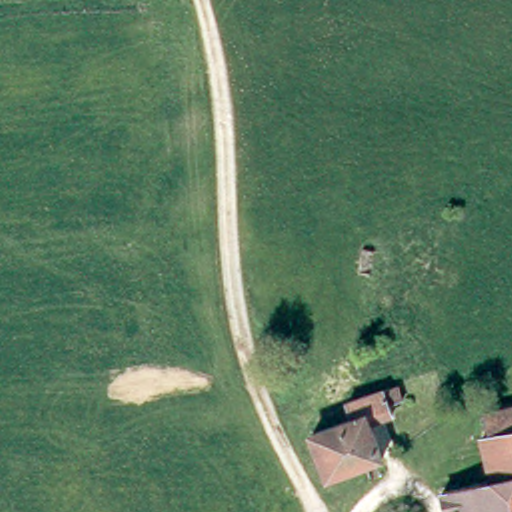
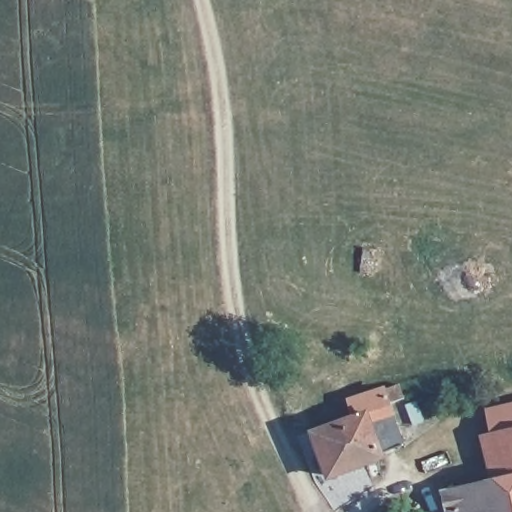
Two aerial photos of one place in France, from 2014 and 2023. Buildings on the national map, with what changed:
unchanged [(399,394),(384,402),(389,412),(369,422),(386,456),(335,481),(311,439),(349,418),(342,403),(391,379),(399,394)]
unchanged [(488,412),(512,405),(512,429),(489,436),(486,414),(488,412)]
unchanged [(444,487),(492,476),(485,436),(489,436),(512,429),(512,512),(450,512),(444,487)]

